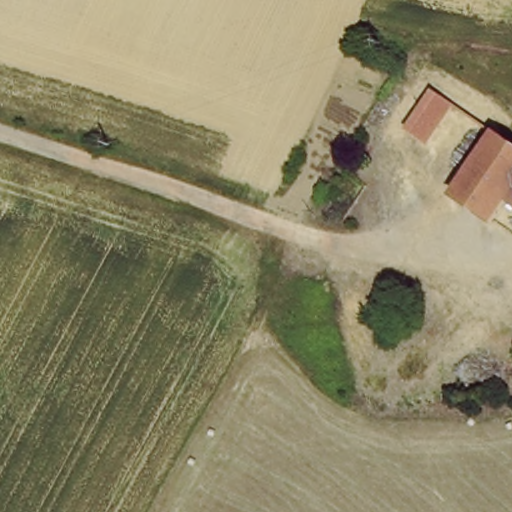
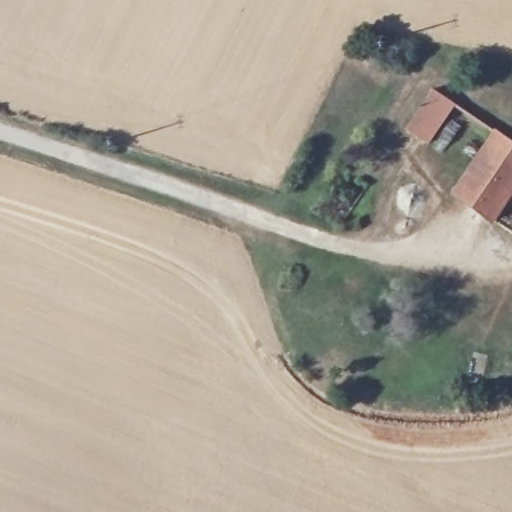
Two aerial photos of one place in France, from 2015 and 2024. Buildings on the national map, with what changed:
unchanged [(512,134),(512,224),(460,189),(475,167),(413,125),(440,86),(512,134)]

